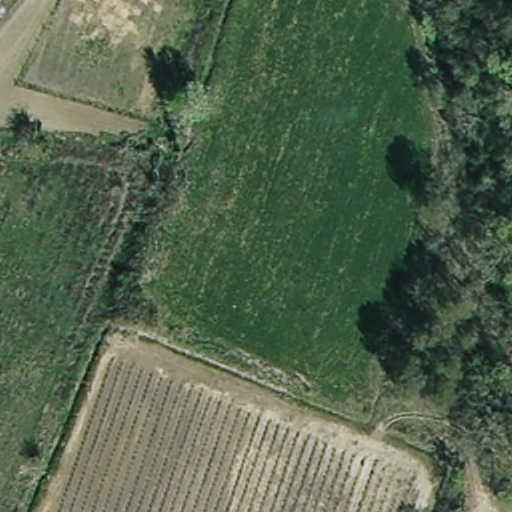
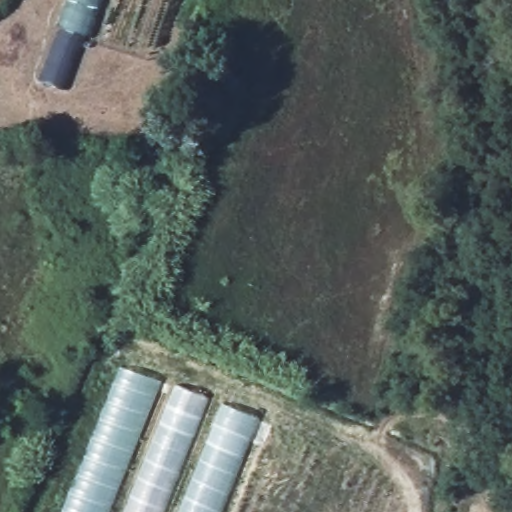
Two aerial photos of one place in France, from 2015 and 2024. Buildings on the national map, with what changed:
new [(62,25),(89,34),(68,90),(41,81),(62,25)]
new [(158,381),(106,512),(62,512),(120,366),(158,381)]
new [(208,398),(162,512),(125,512),(176,384),(208,398)]
new [(219,512),(178,512),(221,403),(257,418),(219,512)]

